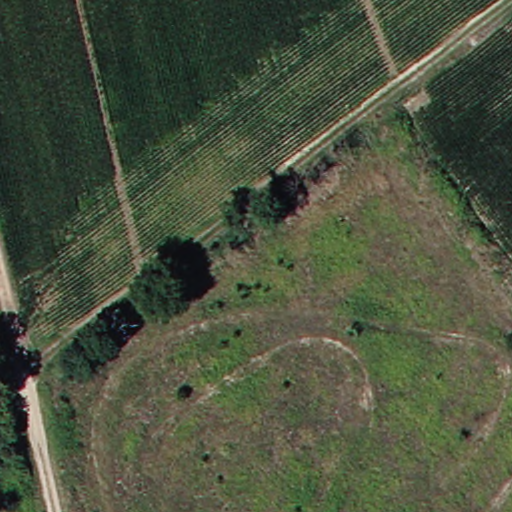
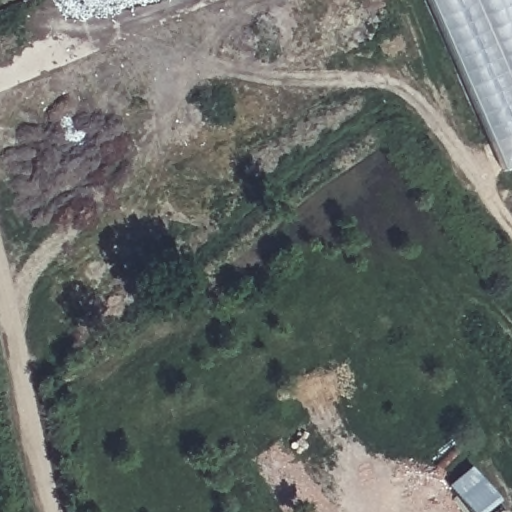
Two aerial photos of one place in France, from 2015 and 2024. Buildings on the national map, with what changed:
new [(426,0),(512,0),(512,167),(502,171),(426,0)]
new [(485,512),(469,512),(447,485),(471,466),(498,501),(485,512)]

